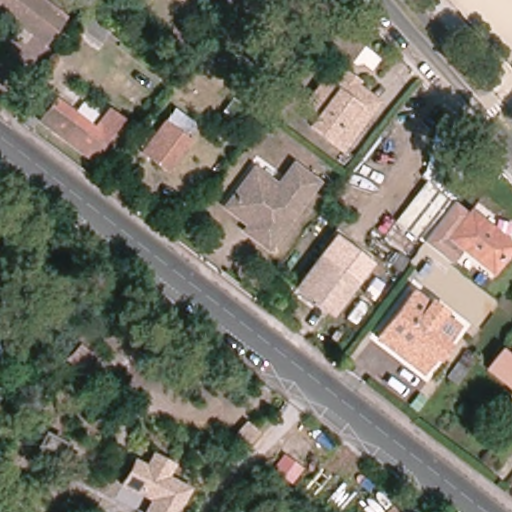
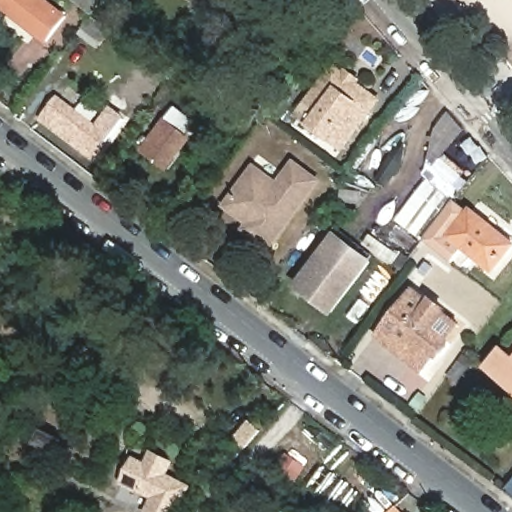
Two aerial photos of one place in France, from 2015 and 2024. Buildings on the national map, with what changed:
unchanged [(47,46),(0,12),(0,0),(41,0),(68,19),(47,46)]
unchanged [(77,0),(105,0),(95,14),(77,0)]
unchanged [(230,0),(237,0),(235,3),(230,0)]
unchanged [(314,123),(323,110),(309,99),(327,76),(337,64),(347,71),(349,68),(362,78),(359,81),(382,100),(373,111),(346,147),(314,123)]
unchanged [(78,131),(71,140),(55,128),(62,119),(46,107),(57,93),(95,123),(101,115),(110,104),(125,116),(116,126),(100,148),(78,131)]
unchanged [(169,166),(141,144),(167,108),(196,131),(169,166)]
unchanged [(280,182),(297,162),(320,179),(269,244),(247,226),(251,220),(227,203),(258,165),(280,182)]
unchanged [(448,197),(420,238),(396,220),(428,181),(448,197)]
unchanged [(476,213),(478,210),(512,239),(512,253),(497,271),(467,246),(456,261),(427,239),(459,198),(476,213)]
unchanged [(294,287),(318,255),(325,247),(363,274),(356,284),(332,316),(294,287)]
unchanged [(377,335),(413,290),(443,313),(459,325),(447,342),(425,372),(411,361),(390,345),(377,335)]
unchanged [(501,349),(512,358),(512,388),(487,367),(501,349)]
unchanged [(166,503),(138,486),(136,489),(124,482),(137,458),(148,464),(154,454),(174,466),(167,476),(178,483),(166,503)]
unchanged [(400,497),(396,506),(399,512),(383,512),(386,509),(375,496),(385,484),(400,497)]

